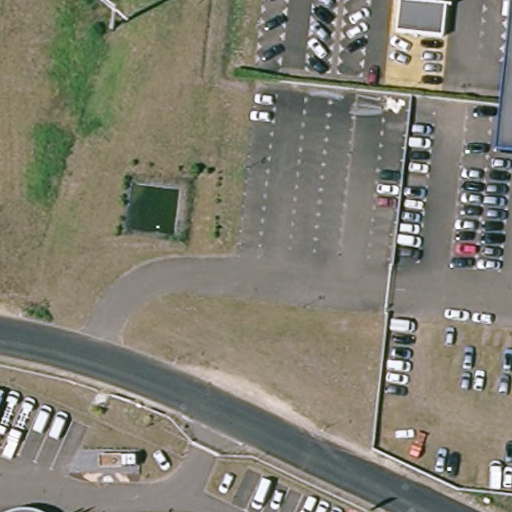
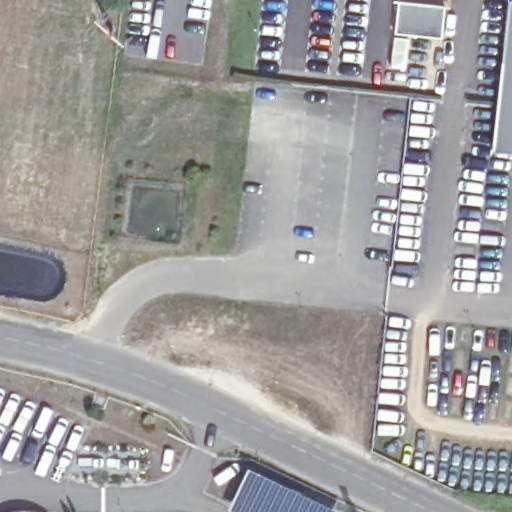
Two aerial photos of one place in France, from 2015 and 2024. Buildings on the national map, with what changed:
unchanged [(450,7),(446,39),(399,34),(403,1),(450,7)]
unchanged [(512,16),(512,58),(506,58),(512,16)]
unchanged [(512,150),(497,149),(506,58),(512,58),(512,150)]
new [(346,512),(232,512),(226,510),(247,465),(346,512)]

